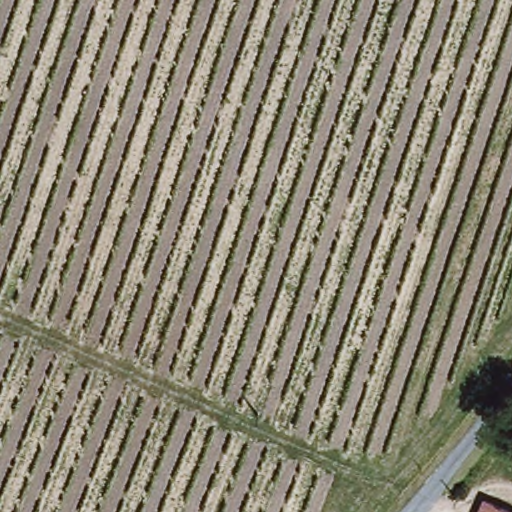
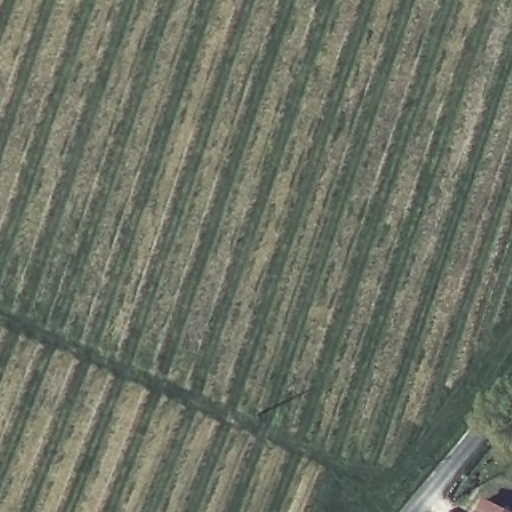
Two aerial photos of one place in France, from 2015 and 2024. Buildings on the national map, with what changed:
unchanged [(484,502),(509,512),(479,512),(484,502)]

